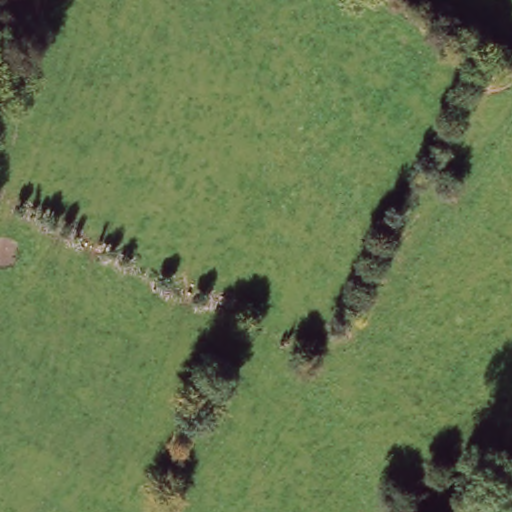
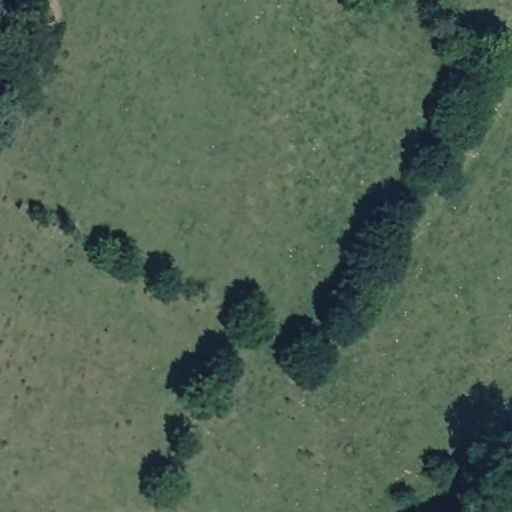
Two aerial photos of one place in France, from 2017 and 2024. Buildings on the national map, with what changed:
[]

